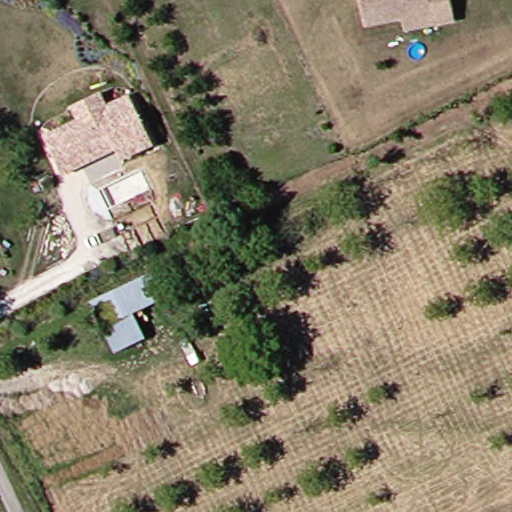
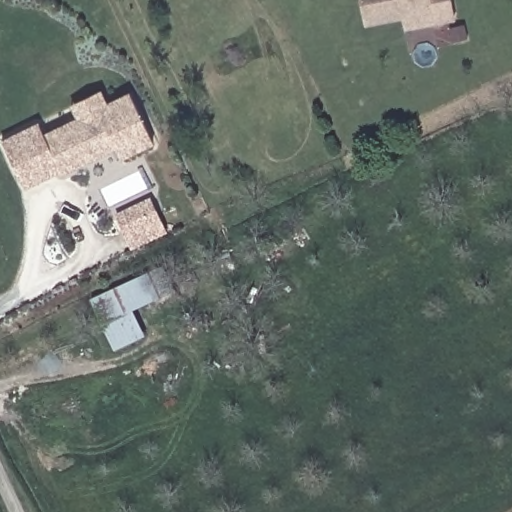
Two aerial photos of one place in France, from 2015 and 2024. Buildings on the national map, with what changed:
unchanged [(407,14),(370,21),(366,0),(456,0),(459,17),(438,21),(438,20),(410,26),(407,14)]
unchanged [(78,117),(71,104),(101,90),(107,103),(130,93),(153,142),(120,157),(115,147),(61,171),(44,132),(78,117)]
new [(24,190),(1,141),(39,122),(44,132),(61,171),(24,190)]
new [(134,254),(117,219),(151,202),(169,237),(134,254)]
unchanged [(108,327),(94,301),(166,269),(178,295),(136,314),(151,341),(120,352),(108,327)]

